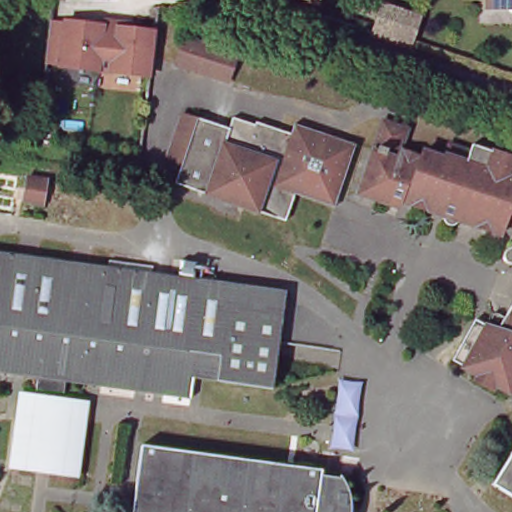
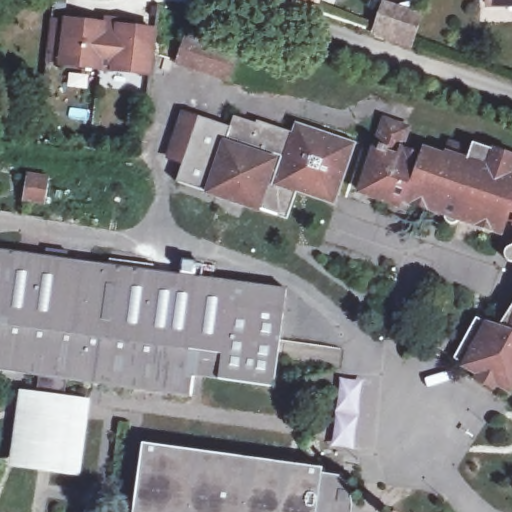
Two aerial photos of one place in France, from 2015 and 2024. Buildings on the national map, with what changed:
unchanged [(281,0),(314,0),(311,9),(281,0)]
unchanged [(503,0),(512,0),(512,5),(503,5),(503,0)]
unchanged [(403,42),(379,34),(366,30),(376,2),(388,6),(412,14),(403,42)]
unchanged [(153,25),(151,75),(48,63),(51,15),(153,25)]
unchanged [(238,59),(230,83),(180,66),(188,42),(238,59)]
unchanged [(297,190),(288,217),(190,185),(177,181),(178,178),(199,117),(230,127),(235,116),(256,123),(257,120),(293,132),(297,122),(357,142),(339,193),(336,204),(297,190)]
unchanged [(503,234),(460,220),(459,222),(457,223),(454,224),(452,223),(448,221),(448,218),(447,215),(402,200),(400,206),(360,192),(384,119),(410,128),(402,149),(422,156),(425,150),(449,158),(453,144),(474,151),(476,144),(512,157),(512,221),(508,220),(503,234)]
unchanged [(25,202),(28,174),(53,179),(53,189),(47,207),(25,202)]
unchanged [(508,258),(506,256),(506,253),(508,250),(512,248),(512,261),(511,260),(508,258)]
unchanged [(87,418),(81,466),(16,457),(24,402),(25,393),(39,395),(42,375),(0,369),(0,250),(288,291),(274,387),(209,377),(205,398),(68,379),(65,398),(80,400),(89,401),(87,418)]
unchanged [(456,357),(460,352),(473,330),(481,318),(492,325),(493,323),(502,325),(512,309),(512,389),(511,391),(496,382),(493,388),(477,379),(481,373),(456,357)]
unchanged [(318,497),(316,512),(135,512),(138,491),(144,444),(322,469),(318,497)]
demolished [(512,455),(512,493),(495,482),(512,455)]
unchanged [(324,473),(342,475),(351,493),(352,510),(352,512),(318,512),(324,473)]

